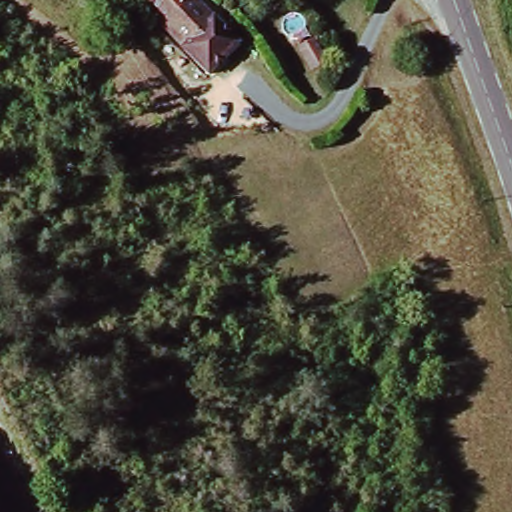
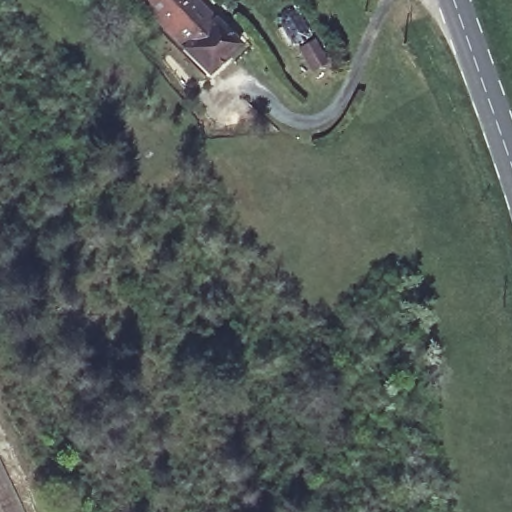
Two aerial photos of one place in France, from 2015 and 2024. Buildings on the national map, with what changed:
unchanged [(161,15),(151,5),(145,0),(198,0),(243,42),(220,68),(161,15)]

